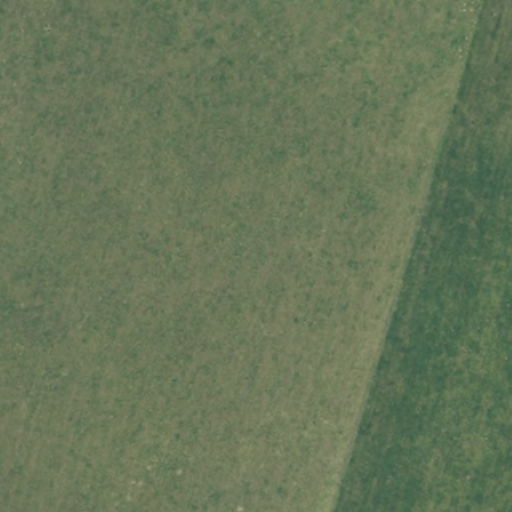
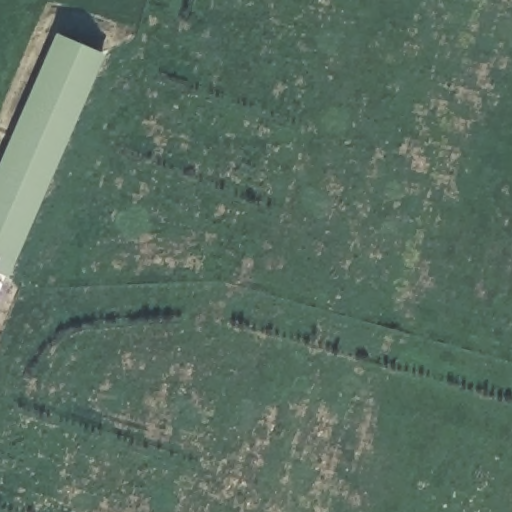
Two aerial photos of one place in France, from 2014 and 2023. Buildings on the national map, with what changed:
new [(102,54),(8,277),(0,274),(0,157),(53,32),(102,54)]

